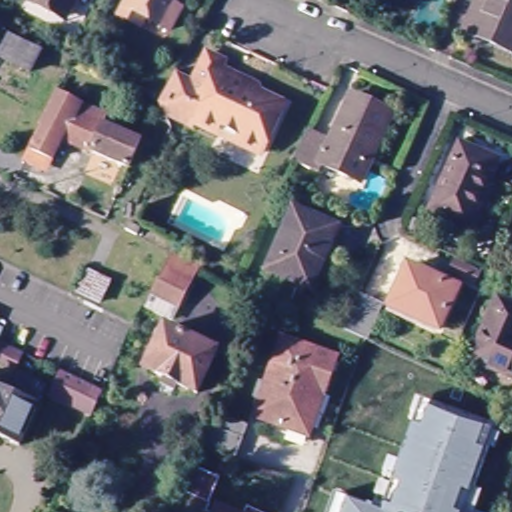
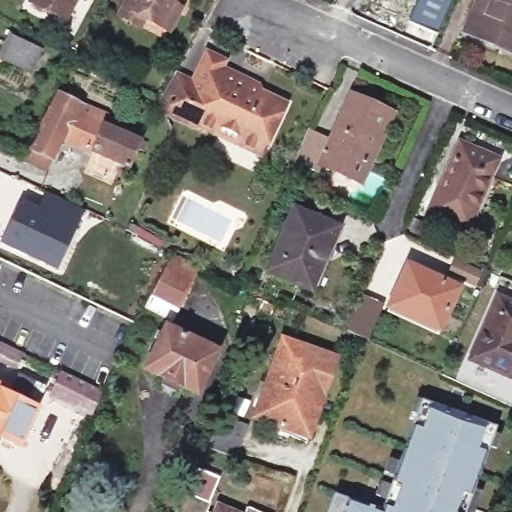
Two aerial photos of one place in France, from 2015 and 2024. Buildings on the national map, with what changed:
unchanged [(31,7),(35,0),(79,0),(69,19),(65,26),(31,7)]
unchanged [(180,14),(171,31),(147,17),(142,27),(121,16),(130,0),(177,0),(175,3),(184,7),(180,14)]
unchanged [(464,36),(480,0),(512,0),(512,58),(464,36)]
unchanged [(33,69),(4,52),(14,32),(44,49),(33,69)]
unchanged [(196,129),(193,135),(165,120),(160,108),(174,80),(194,90),(209,60),(225,68),(221,76),(249,89),(258,93),(256,99),(279,110),(286,112),(277,131),(261,162),(237,150),(219,140),(196,129)]
unchanged [(24,165),(32,151),(44,128),(43,126),(61,90),(112,114),(107,124),(141,140),(128,170),(64,140),(53,161),(46,175),(24,165)]
unchanged [(355,99),(393,116),(368,169),(361,185),(322,167),(318,176),(293,165),(308,132),(333,143),(355,99)]
unchanged [(430,212),(460,145),(490,159),(497,162),(490,179),(468,229),(430,212)]
new [(37,205),(45,190),(84,210),(57,270),(0,243),(0,240),(19,199),(37,205)]
unchanged [(307,292),(268,273),(295,211),(339,232),(345,235),(331,266),(316,297),(307,292)]
unchanged [(418,230),(407,226),(411,216),(421,221),(418,230)]
unchanged [(139,238),(127,232),(130,225),(142,231),(139,238)]
unchanged [(471,281),(447,271),(454,256),(477,266),(471,281)]
unchanged [(182,302),(158,292),(172,258),(197,268),(182,302)]
unchanged [(431,333),(382,311),(404,261),(454,283),(431,333)]
unchanged [(490,283),(478,278),(484,267),(494,271),(490,283)]
unchanged [(357,335),(343,328),(355,302),(369,308),(357,335)]
unchanged [(468,365),(496,303),(512,310),(512,385),(468,365)]
unchanged [(196,395),(146,370),(166,327),(216,354),(196,395)]
unchanged [(302,433),(254,417),(283,340),(337,359),(325,395),(320,408),(310,436),(302,433)]
unchanged [(0,362),(0,346),(21,356),(15,370),(0,362)]
unchanged [(54,393),(64,370),(105,390),(95,413),(54,393)]
unchanged [(0,382),(3,384),(5,379),(13,383),(9,390),(16,392),(24,375),(50,386),(42,403),(43,405),(27,441),(4,431),(0,440),(0,439),(0,382)]
unchanged [(385,501),(374,496),(380,481),(390,485),(391,482),(394,475),(383,471),(387,458),(399,461),(412,427),(416,415),(411,412),(416,398),(420,400),(493,426),(491,430),(500,435),(494,449),(487,445),(472,488),(481,491),(475,512),(380,512),(383,505),(385,501)]
unchanged [(246,426),(235,460),(205,450),(222,417),(246,426)]
unchanged [(226,477),(215,502),(218,503),(214,511),(216,512),(184,512),(205,467),(226,477)]
unchanged [(347,501),(379,512),(330,512),(336,496),(347,501)]
unchanged [(241,512),(220,512),(223,504),(241,512)]
unchanged [(273,512),(250,512),(253,504),(273,512)]

